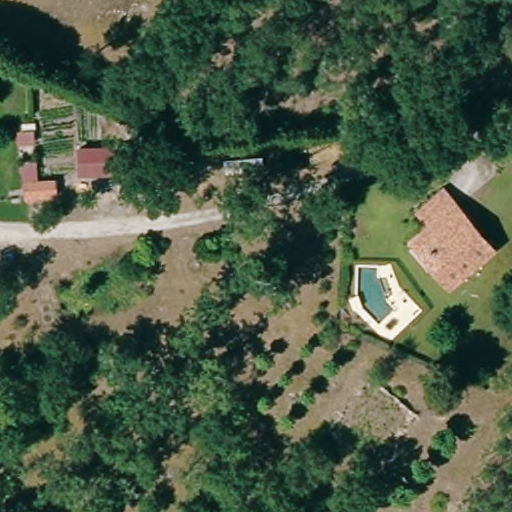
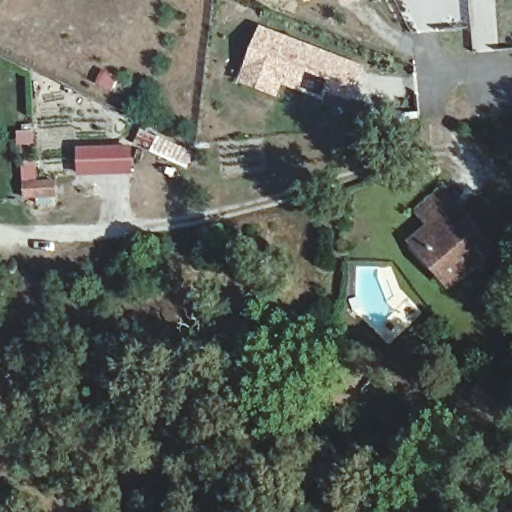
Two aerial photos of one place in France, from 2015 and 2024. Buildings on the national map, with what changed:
new [(306,2),(305,0),(311,0),(306,2)]
new [(343,3),(342,0),(350,0),(343,3)]
new [(281,85),(276,97),(239,82),(260,27),(364,67),(350,102),(326,92),(324,101),(281,85)]
unchanged [(122,170),(120,175),(114,173),(87,161),(96,139),(129,152),(122,170)]
unchanged [(443,282),(405,237),(423,222),(412,209),(435,189),(446,202),(484,246),(443,282)]

